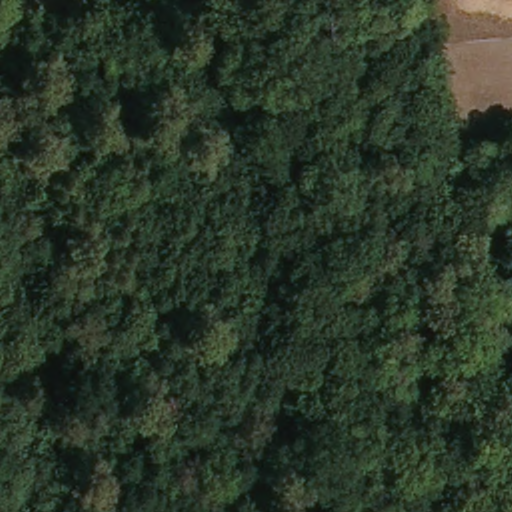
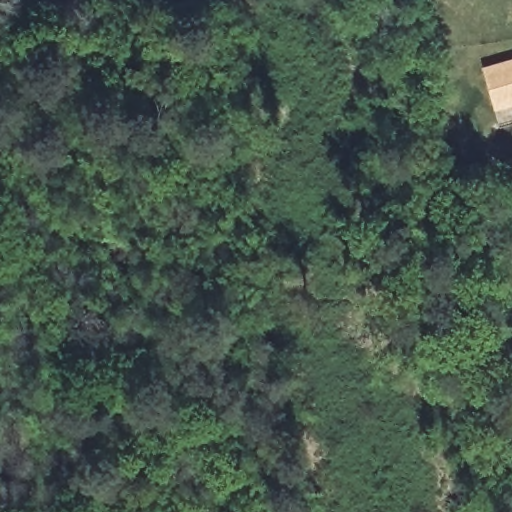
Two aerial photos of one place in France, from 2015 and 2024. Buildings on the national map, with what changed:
new [(481,69),(512,60),(512,102),(492,107),(481,69)]

